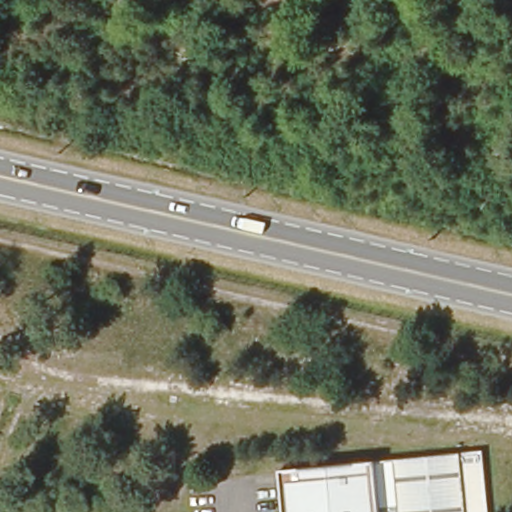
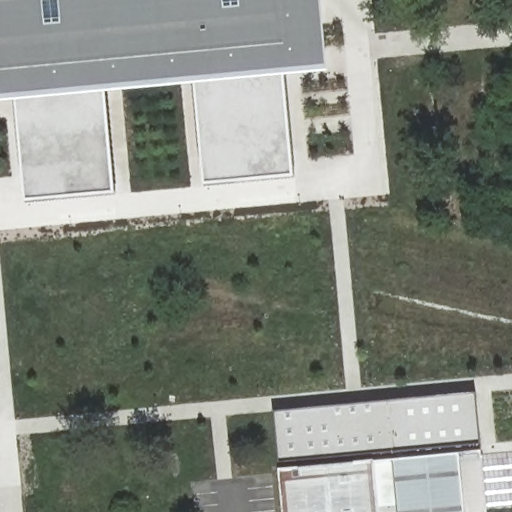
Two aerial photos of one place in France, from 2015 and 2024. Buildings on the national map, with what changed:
new [(279,15),(284,72),(286,72),(295,178),(206,186),(196,80),(107,88),(116,194),(27,202),(17,96),(0,98),(0,0),(309,0),(310,12),(279,15)]
unchanged [(269,413),(472,392),(479,453),(484,512),(279,512),(275,471),(269,413)]

